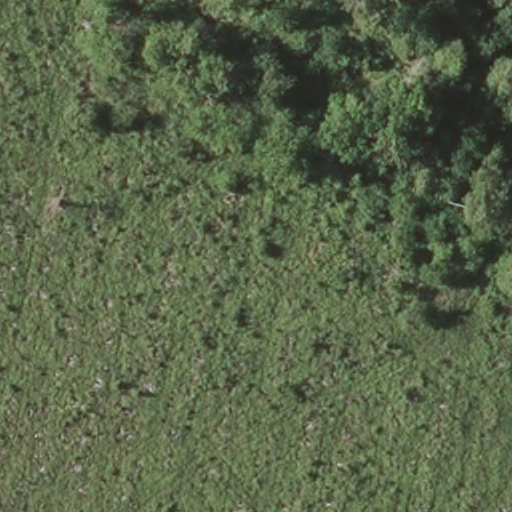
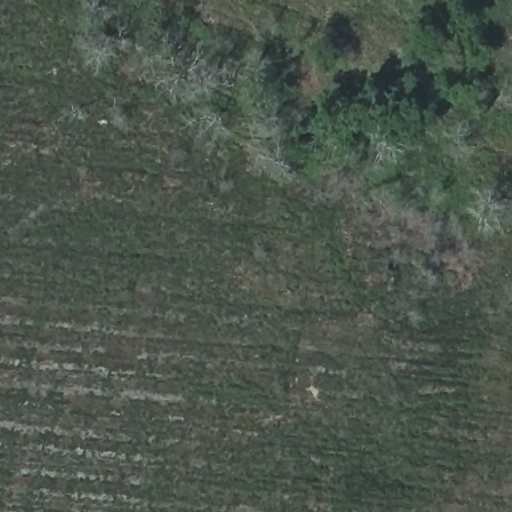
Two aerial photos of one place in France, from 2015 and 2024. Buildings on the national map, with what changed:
unchanged [(372,23),(379,0),(429,0),(417,37),(372,23)]

